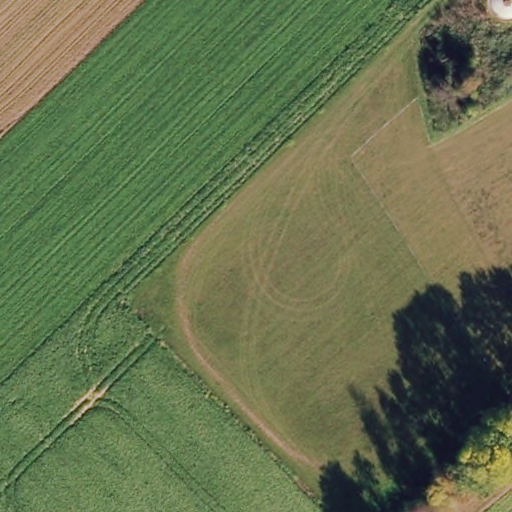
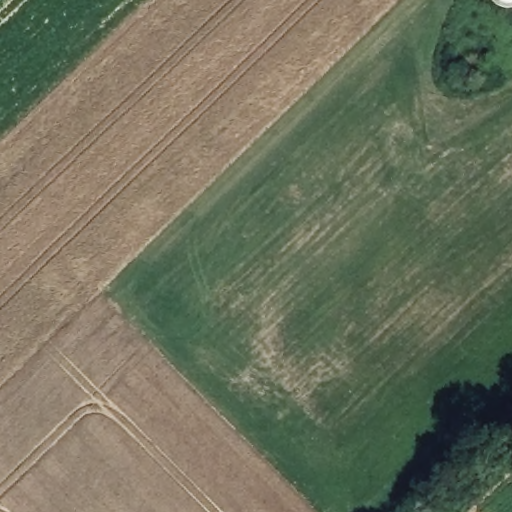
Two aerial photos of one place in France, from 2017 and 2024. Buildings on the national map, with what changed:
unchanged [(448,43),(463,41),(466,65),(449,66),(448,43)]

